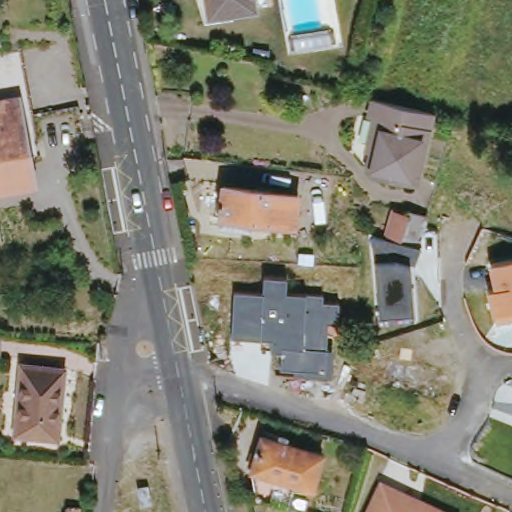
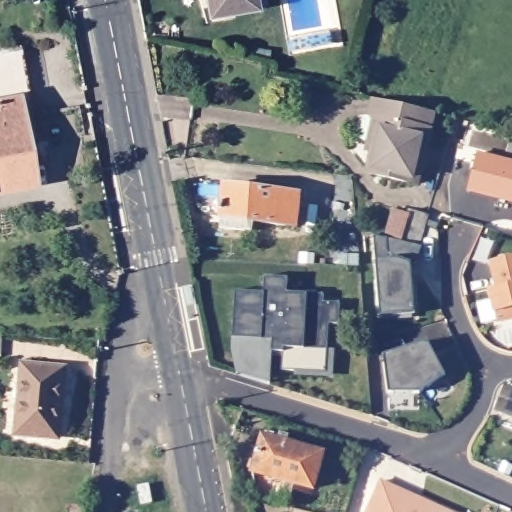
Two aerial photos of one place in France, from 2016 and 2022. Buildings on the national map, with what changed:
unchanged [(217,16),(214,0),(255,0),(256,9),(217,16)]
unchanged [(36,125),(19,128),(30,185),(0,191),(0,100),(31,95),(36,125)]
unchanged [(392,103),(429,112),(434,113),(418,185),(370,173),(367,170),(373,145),(368,144),(374,116),(369,115),(374,99),(392,103)]
new [(478,155),(512,164),(512,203),(468,191),(478,155)]
unchanged [(299,195),(295,227),(221,218),(224,186),(299,195)]
unchanged [(428,214),(418,244),(421,245),(413,262),(409,262),(413,314),(378,316),(374,260),(376,260),(374,235),(383,235),(391,204),(428,214)]
unchanged [(512,256),(512,319),(497,323),(493,312),(489,313),(484,288),(493,286),(488,262),(512,256)]
unchanged [(261,294),(263,278),(287,279),(286,294),(304,296),(306,295),(323,296),(322,304),(339,303),(338,322),(327,321),(326,349),(334,349),(332,378),(294,376),(293,371),(281,370),(281,351),(270,351),(271,340),(261,339),(231,338),(234,293),(261,294)]
unchanged [(0,357),(0,336),(3,336),(2,357),(0,357)]
new [(428,343),(448,377),(422,395),(391,394),(384,356),(428,343)]
unchanged [(67,403),(63,402),(61,434),(20,430),(28,359),(71,363),(67,403)]
unchanged [(289,503),(258,495),(253,466),(263,431),(324,448),(314,484),(296,479),(289,502),(289,503)]
unchanged [(381,482),(400,490),(411,495),(421,500),(448,512),(367,512),(381,482)]
unchanged [(143,505),(141,499),(142,498),(139,487),(149,485),(153,503),(143,505)]

